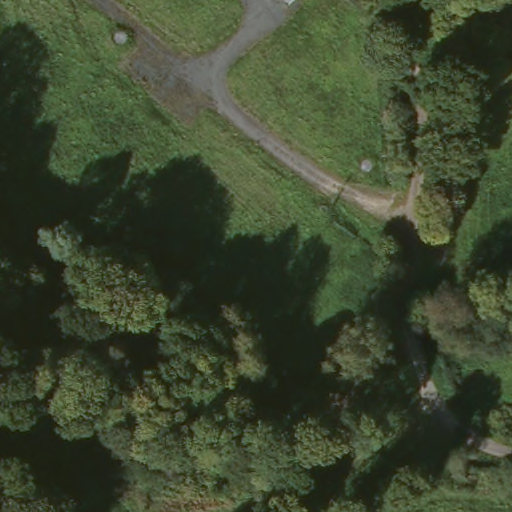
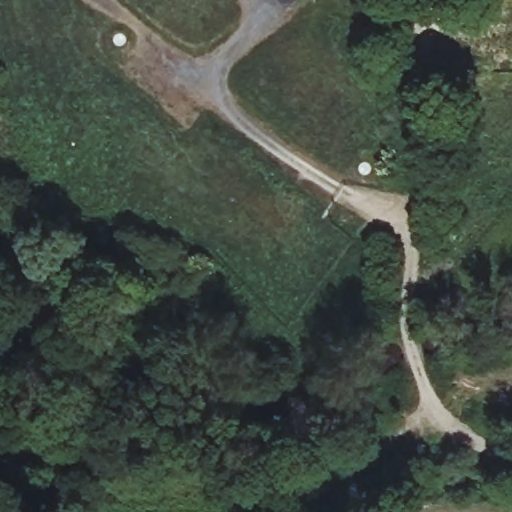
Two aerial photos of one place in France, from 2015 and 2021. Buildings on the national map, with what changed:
unchanged [(272,0),(294,0),(281,11),(272,0)]

